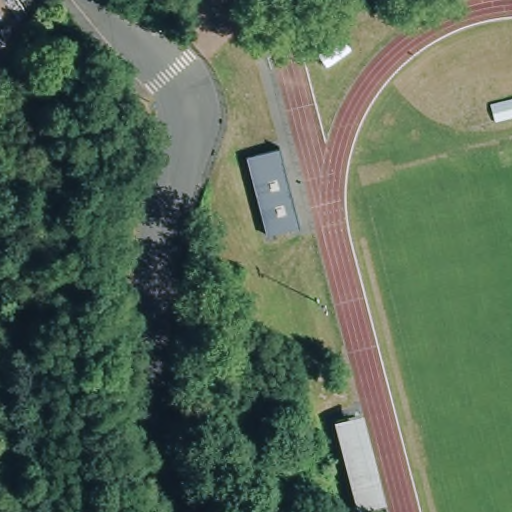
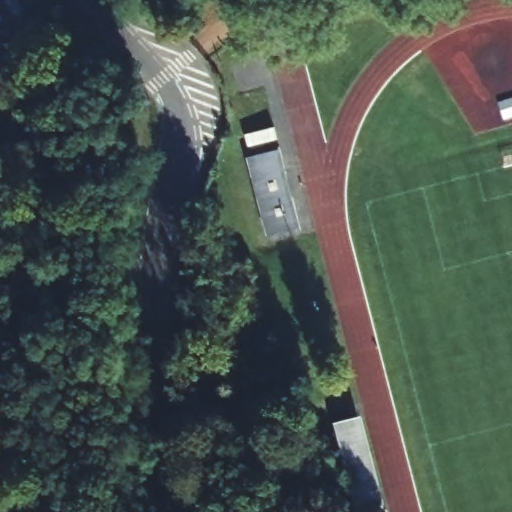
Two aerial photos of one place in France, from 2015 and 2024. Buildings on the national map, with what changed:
unchanged [(283,152),(289,179),(281,180),(288,210),(295,209),(299,232),(267,238),(251,158),(283,152)]
unchanged [(384,502),(385,505),(375,507),(359,511),(333,419),(363,414),(384,502)]

